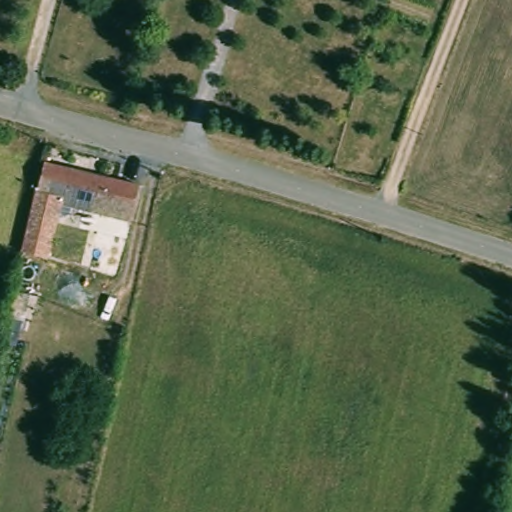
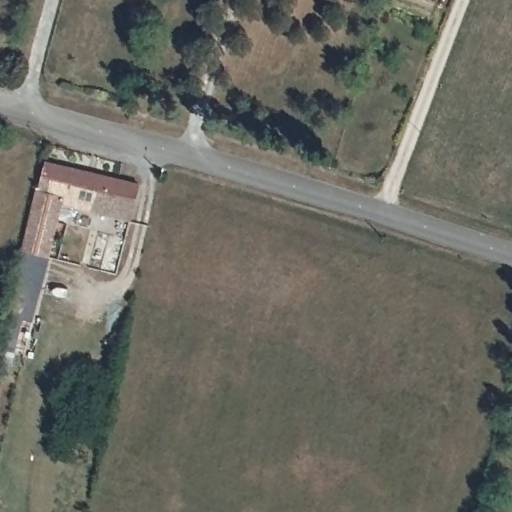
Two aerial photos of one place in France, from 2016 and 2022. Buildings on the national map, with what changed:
unchanged [(68,199),(69,191),(45,186),(51,161),(140,180),(134,215),(68,199)]
unchanged [(39,184),(45,186),(69,191),(68,199),(53,257),(24,251),(39,184)]

